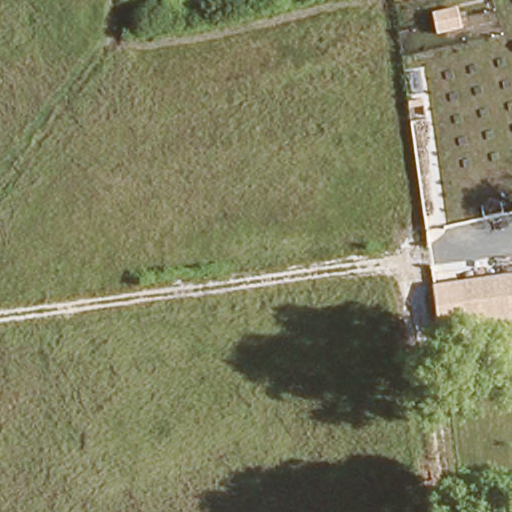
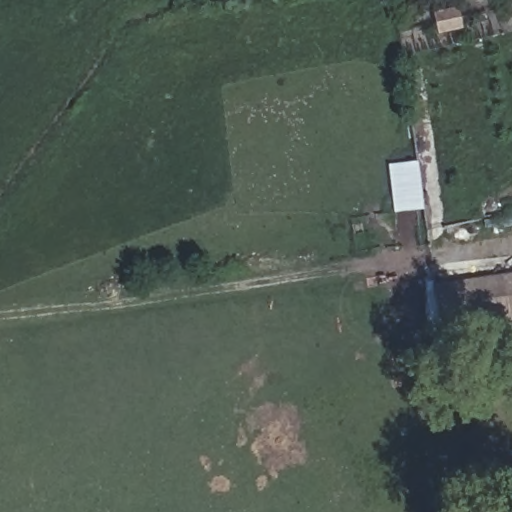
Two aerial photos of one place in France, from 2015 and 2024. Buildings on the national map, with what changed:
new [(389,165),(418,162),(423,209),(394,213),(389,165)]
unchanged [(434,285),(512,274),(512,321),(440,332),(434,285)]

